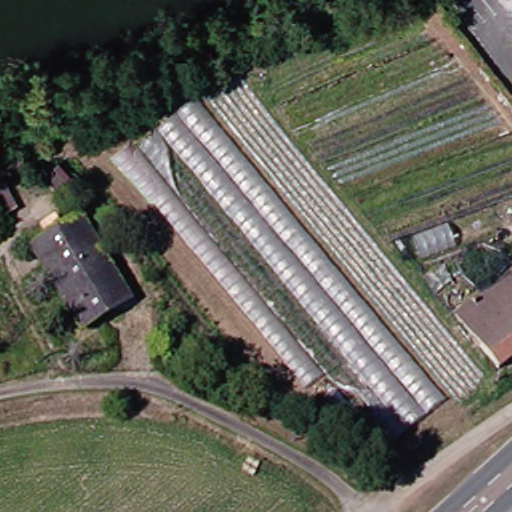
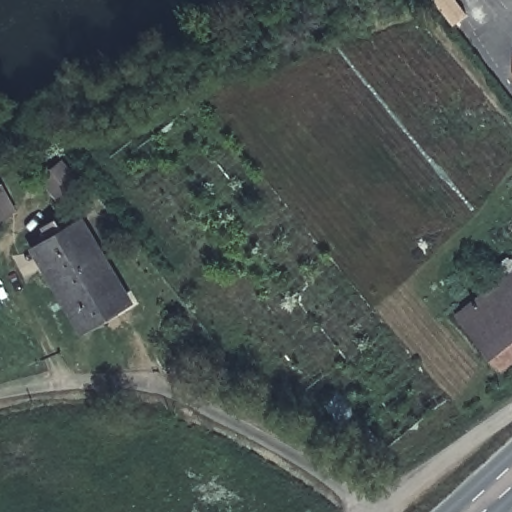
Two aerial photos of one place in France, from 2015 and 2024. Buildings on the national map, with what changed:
demolished [(246,82),(433,302),(414,319),(470,385),(374,456),(114,155),(246,82)]
unchanged [(61,163),(79,185),(65,196),(47,174),(61,163)]
unchanged [(19,208),(0,219),(0,181),(2,180),(19,208)]
unchanged [(99,318),(80,328),(35,246),(82,222),(116,287),(125,305),(99,318)]
unchanged [(512,274),(512,357),(496,370),(457,317),(512,274)]

